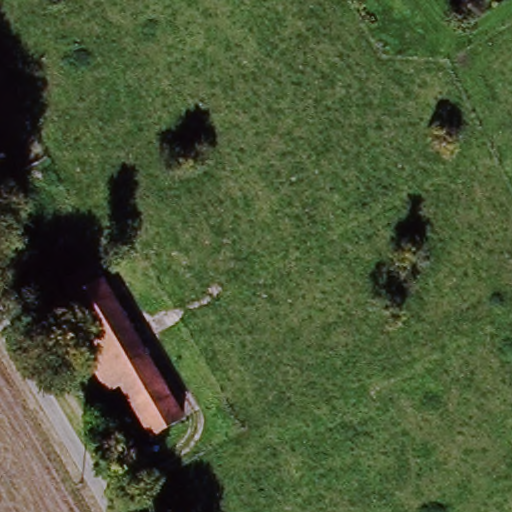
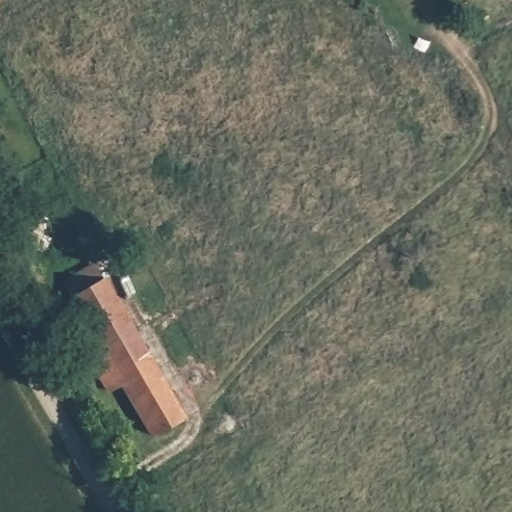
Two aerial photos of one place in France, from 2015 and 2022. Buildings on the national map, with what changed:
unchanged [(507,0),(508,0),(507,1),(507,0)]
unchanged [(75,300),(66,286),(99,266),(189,418),(157,437),(125,384),(75,300)]
unchanged [(61,309),(75,300),(125,384),(112,392),(61,309)]

